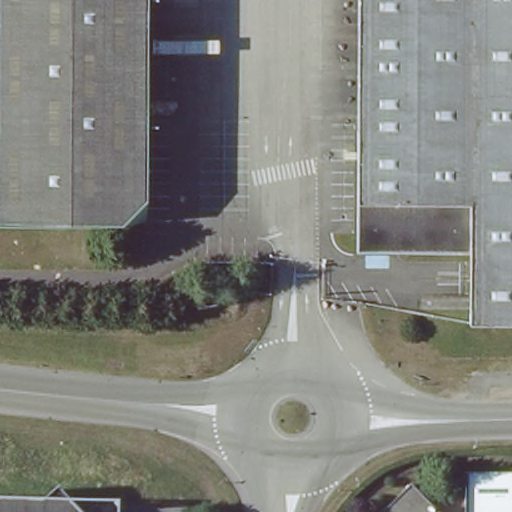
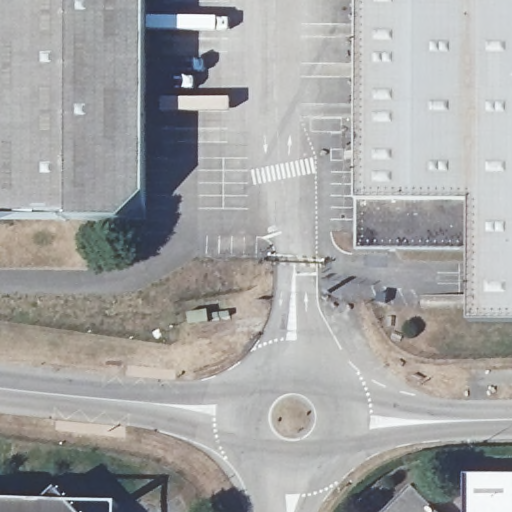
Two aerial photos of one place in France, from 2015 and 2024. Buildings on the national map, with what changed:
unchanged [(0,221),(0,0),(138,0),(137,222),(0,221)]
unchanged [(465,322),(465,203),(353,202),(353,0),(512,0),(512,323),(465,322)]
unchanged [(465,512),(465,471),(512,471),(512,512),(465,512)]
unchanged [(57,482),(86,512),(0,512),(0,492),(45,493),(57,482)]
unchanged [(441,512),(380,512),(411,482),(441,512)]

